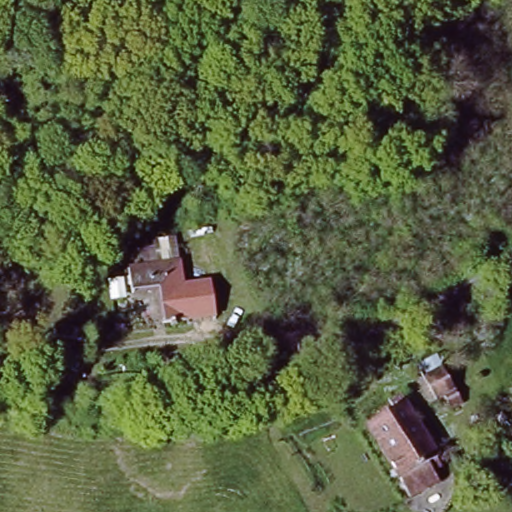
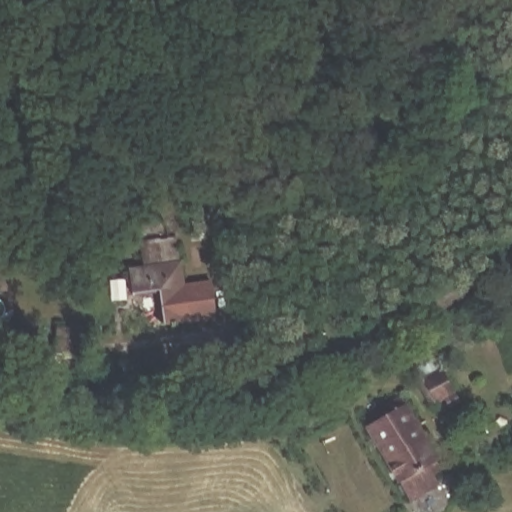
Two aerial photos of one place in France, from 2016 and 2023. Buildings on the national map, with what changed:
unchanged [(189,318),(167,320),(165,287),(134,290),(132,268),(163,263),(162,241),(182,238),(189,318)]
unchanged [(92,333),(62,337),(59,316),(90,311),(92,333)]
unchanged [(470,405),(463,409),(454,397),(441,405),(428,380),(449,369),(470,405)]
unchanged [(446,458),(440,461),(447,470),(440,474),(444,479),(414,495),(373,426),(381,421),(373,407),(393,395),(396,401),(409,395),(446,458)]

